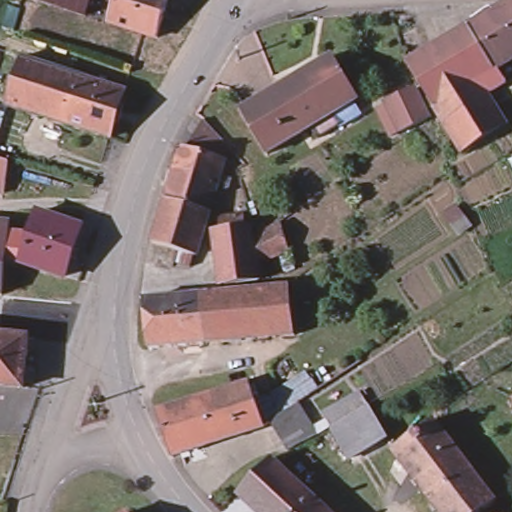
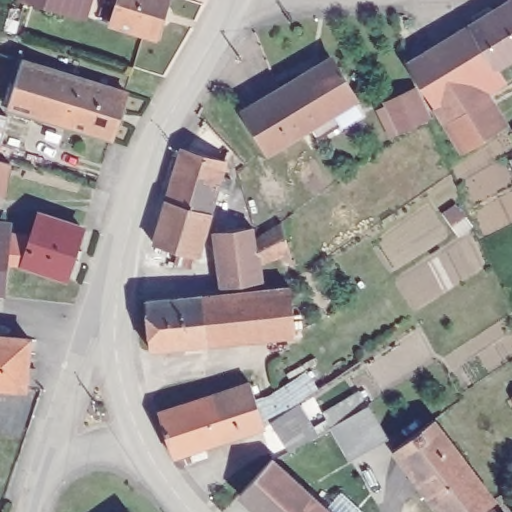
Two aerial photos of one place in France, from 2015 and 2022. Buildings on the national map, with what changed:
unchanged [(85,19),(26,0),(91,0),(85,19)]
unchanged [(158,39),(112,25),(120,0),(170,0),(158,39)]
unchanged [(505,0),(512,0),(512,55),(497,65),(470,21),(505,0)]
unchanged [(407,60),(470,21),(497,65),(435,103),(407,60)]
unchanged [(320,134),(313,122),(268,150),(242,105),(303,70),(331,52),(357,96),(330,113),(337,124),(320,134)]
unchanged [(88,79),(75,127),(12,109),(27,60),(88,79)]
unchanged [(497,65),(506,79),(487,90),(507,121),(463,149),(435,103),(497,65)]
unchanged [(90,80),(131,92),(117,141),(75,127),(88,79),(90,80)]
unchanged [(415,86),(429,115),(402,127),(388,99),(415,86)]
unchanged [(3,143),(0,142),(0,111),(12,115),(3,143)]
unchanged [(225,187),(214,184),(207,209),(163,196),(178,144),(184,145),(200,116),(227,145),(222,157),(217,173),(228,176),(225,187)]
unchanged [(0,194),(0,160),(14,165),(13,165),(7,195),(0,194)]
unchanged [(170,258),(173,247),(150,240),(163,196),(207,209),(193,253),(191,252),(187,264),(170,258)]
unchanged [(464,216),(452,225),(445,216),(457,207),(464,216)]
unchanged [(5,292),(0,292),(0,237),(31,240),(40,210),(84,225),(68,273),(25,260),(7,258),(5,292)]
unchanged [(217,227),(215,215),(240,212),(242,224),(248,223),(250,236),(253,235),(277,219),(285,248),(253,260),(256,277),(217,283),(210,227),(217,227)]
unchanged [(259,285),(287,283),(290,331),(202,340),(198,291),(259,285)]
unchanged [(198,291),(202,340),(146,346),(142,296),(198,291)]
unchanged [(32,385),(0,382),(0,331),(37,335),(32,385)]
unchanged [(251,378),(265,422),(220,437),(205,393),(251,378)]
unchanged [(350,453),(332,422),(325,408),(361,387),(369,401),(387,432),(350,453)]
unchanged [(205,393),(220,437),(180,450),(175,452),(161,408),(205,393)]
unchanged [(300,398),(317,431),(313,434),(290,447),(272,416),(300,398)]
unchanged [(495,499),(478,512),(443,512),(394,446),(434,416),(495,499)]
unchanged [(313,497),(299,512),(258,512),(240,495),(273,460),(313,497)]
unchanged [(299,512),(313,497),(328,512),(299,512)]
unchanged [(498,512),(488,512),(495,507),(498,512)]
unchanged [(132,512),(126,512),(130,510),(132,512)]

